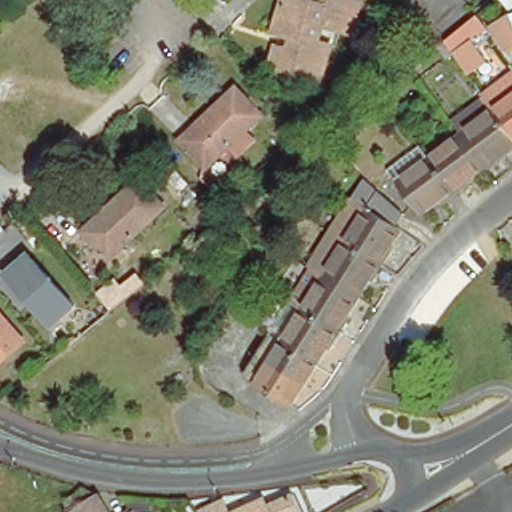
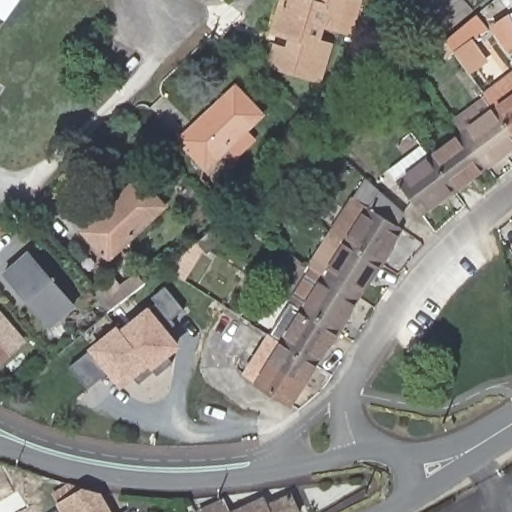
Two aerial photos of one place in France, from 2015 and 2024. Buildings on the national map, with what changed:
unchanged [(328,20),(323,37),(335,41),(324,76),(275,60),(281,42),(292,45),(297,32),(278,26),(286,0),(364,0),(355,29),(328,20)]
unchanged [(441,35),(412,0),(461,0),(470,10),(441,35)]
unchanged [(510,11),(512,10),(512,47),(508,50),(490,25),(510,11)]
unchanged [(487,32),(484,36),(489,41),(479,48),(487,62),(468,76),(456,60),(450,62),(440,47),(477,16),(487,32)]
unchanged [(512,75),(512,131),(485,96),(512,75)]
unchanged [(263,100),(254,108),(261,116),(205,167),(180,140),(237,89),(245,98),(255,90),(263,100)]
unchanged [(485,163),(462,132),(454,121),(485,96),(512,131),(512,148),(510,150),(505,153),(503,150),(485,163)]
unchanged [(462,132),(485,163),(470,175),(472,179),(458,189),(455,190),(430,157),(462,132)]
unchanged [(335,156),(324,166),(310,150),(321,141),(335,156)]
unchanged [(437,199),(420,212),(390,171),(422,146),(430,157),(455,190),(442,200),(440,202),(437,199)]
unchanged [(400,214),(405,217),(392,235),(396,239),(392,245),(386,255),(338,225),(373,170),(408,202),(400,214)]
unchanged [(164,205),(109,259),(84,231),(138,178),(164,205)]
unchanged [(375,270),(371,268),(361,285),(317,257),(338,225),(386,255),(375,270)]
unchanged [(223,237),(207,250),(200,240),(215,227),(223,237)]
new [(187,280),(167,268),(185,236),(205,247),(187,280)]
unchanged [(49,327),(2,271),(30,247),(79,305),(49,327)]
unchanged [(295,291),(317,257),(361,285),(349,304),(352,306),(346,316),(343,321),(295,291)]
new [(110,311),(97,295),(115,281),(119,285),(131,275),(141,287),(110,311)]
new [(151,298),(165,287),(181,310),(170,319),(174,325),(167,330),(181,347),(120,388),(88,348),(115,327),(148,306),(155,303),(151,298)]
unchanged [(329,337),(315,359),(297,386),(300,388),(295,396),(249,367),(271,330),(295,291),(343,321),(332,338),(329,337)]
unchanged [(19,330),(0,345),(0,308),(19,330)]
unchanged [(65,503),(83,490),(101,495),(111,512),(70,512),(65,503)]
unchanged [(264,498),(268,505),(292,494),(299,512),(231,512),(264,498)]
unchanged [(128,510),(129,497),(155,499),(154,511),(134,510),(128,510)]
unchanged [(222,499),(229,512),(197,512),(222,499)]
unchanged [(134,510),(134,512),(131,512),(134,510)]

